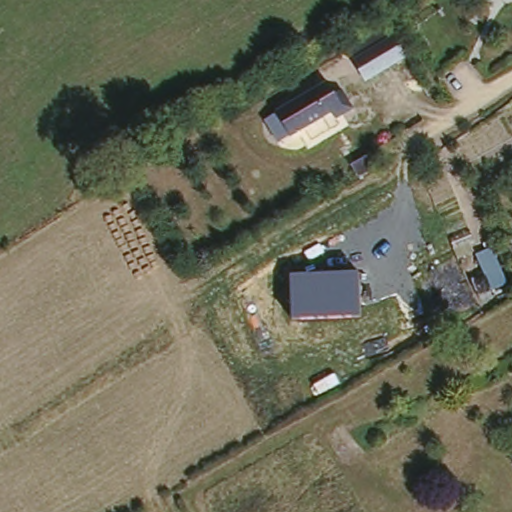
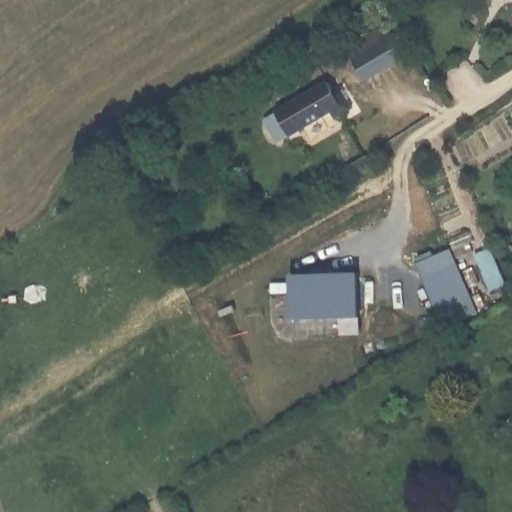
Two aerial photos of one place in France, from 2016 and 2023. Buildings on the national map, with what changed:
unchanged [(352,47),(390,27),(408,56),(367,77),(352,47)]
unchanged [(327,81),(336,95),(343,91),(354,111),(338,121),(333,114),(291,140),(274,113),(327,81)]
unchanged [(509,283),(495,290),(486,274),(477,277),(469,262),(494,249),(509,283)]
new [(480,313),(447,326),(418,264),(451,250),(480,313)]
unchanged [(362,271),(361,318),(294,319),(292,275),(362,271)]

